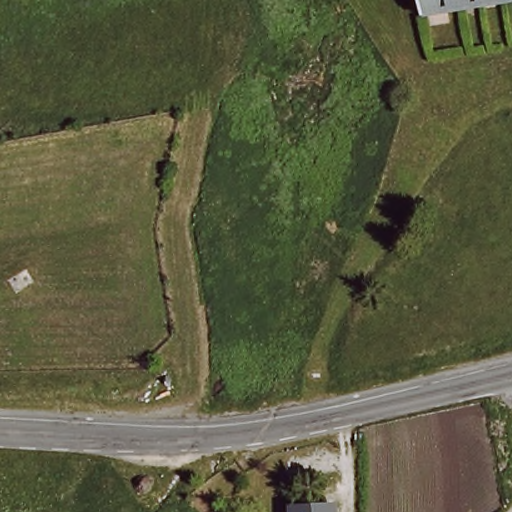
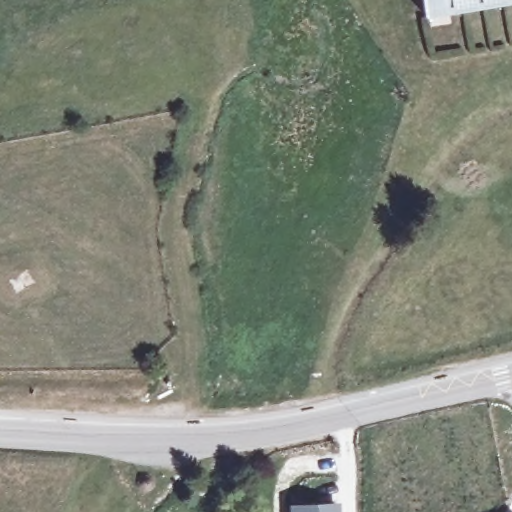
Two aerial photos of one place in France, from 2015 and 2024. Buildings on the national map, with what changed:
unchanged [(424,0),(483,0),(425,10),(424,0)]
unchanged [(425,10),(483,0),(512,0),(512,3),(426,17),(425,10)]
unchanged [(297,512),(296,508),(335,506),(336,512),(297,512)]

